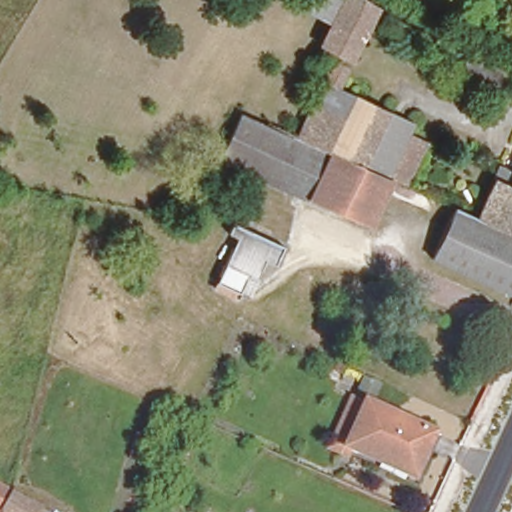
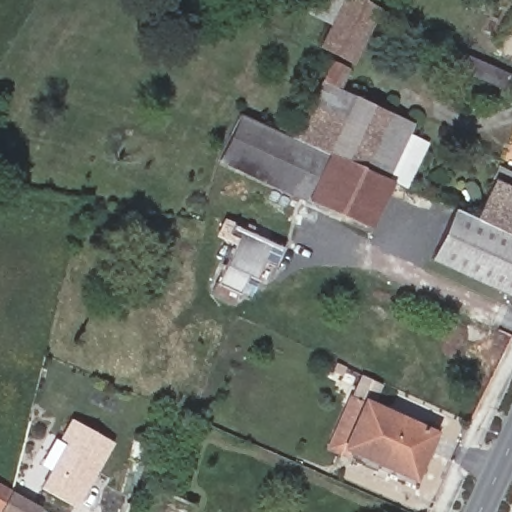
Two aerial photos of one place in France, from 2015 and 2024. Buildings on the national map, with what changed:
unchanged [(346,62),(318,49),(334,15),(311,5),(313,0),(365,0),(374,6),(346,62)]
unchanged [(482,58),(512,71),(512,80),(507,88),(465,70),(471,54),(482,58)]
unchanged [(325,67),(342,75),(336,90),(411,126),(407,135),(389,176),(387,175),(295,132),(325,67)]
unchanged [(271,120),(295,132),(387,175),(389,176),(391,177),(367,227),(225,160),(249,110),(271,120)]
unchanged [(389,176),(407,135),(428,145),(411,187),(391,177),(389,176)]
unchanged [(503,230),(474,216),(495,170),(512,176),(512,234),(503,230)]
unchanged [(474,216),(503,230),(512,234),(512,297),(431,260),(456,208),(474,216)]
unchanged [(283,250),(272,267),(265,265),(255,282),(246,277),(235,295),(212,282),(237,241),(229,235),(235,224),(283,250)]
unchanged [(414,479),(344,446),(342,452),(330,445),(354,394),(367,400),(437,432),(414,479)]
new [(60,438),(72,418),(115,441),(77,508),(41,485),(67,442),(60,438)]
unchanged [(45,512),(0,512),(0,485),(41,510),(45,512)]

